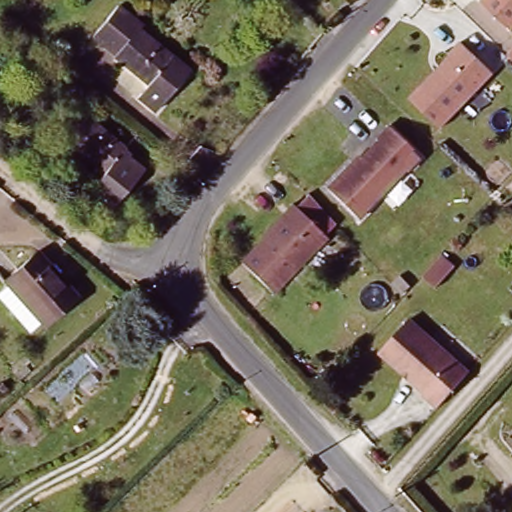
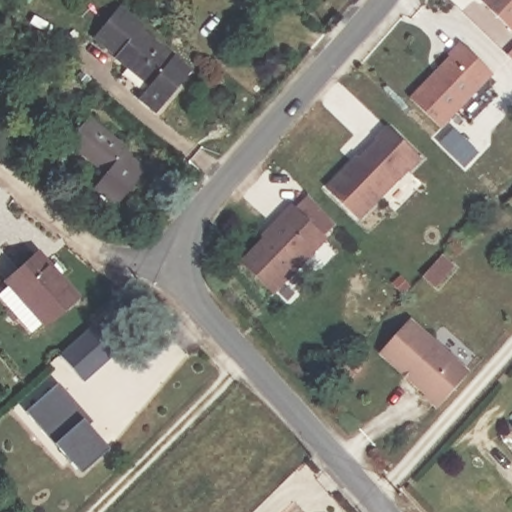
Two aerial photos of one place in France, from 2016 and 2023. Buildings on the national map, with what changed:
unchanged [(512,21),(490,0),(512,0),(512,21)]
unchanged [(174,93),(164,106),(147,92),(158,78),(126,51),(125,49),(103,30),(128,1),(151,20),(148,24),(198,65),(174,93)]
unchanged [(498,67),(446,122),(415,93),(467,38),(498,67)]
unchanged [(98,88),(88,100),(68,83),(78,71),(98,88)]
unchanged [(136,144),(132,148),(153,167),(124,201),(118,196),(115,197),(114,197),(113,197),(110,196),(108,194),(108,192),(108,190),(108,189),(108,188),(102,184),(110,173),(114,167),(77,137),(98,112),(136,144)]
unchanged [(361,215),(329,182),(354,155),(357,158),(380,135),(379,133),(391,120),(424,153),(361,215)]
unchanged [(330,233),(277,288),(242,255),(295,200),(330,233)]
unchanged [(60,261),(63,258),(70,266),(64,272),(83,295),(53,320),(50,316),(38,326),(6,288),(18,279),(14,275),(48,246),(60,261)]
unchanged [(382,347),(413,312),(473,364),(474,364),(442,400),(441,399),(382,347)]
new [(93,324),(116,350),(80,383),(57,357),(93,324)]
new [(88,414),(93,420),(89,424),(109,447),(81,471),(27,410),(59,381),(88,414)]

